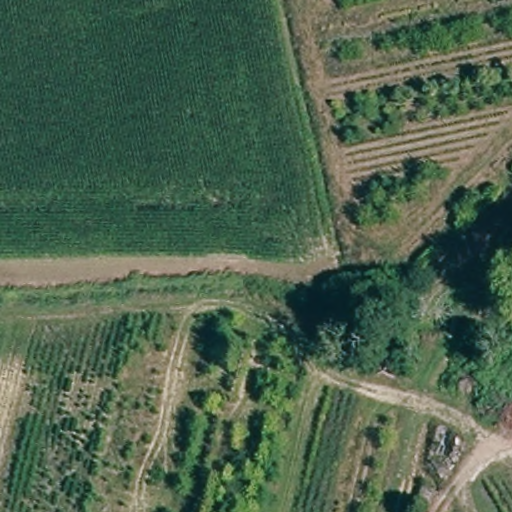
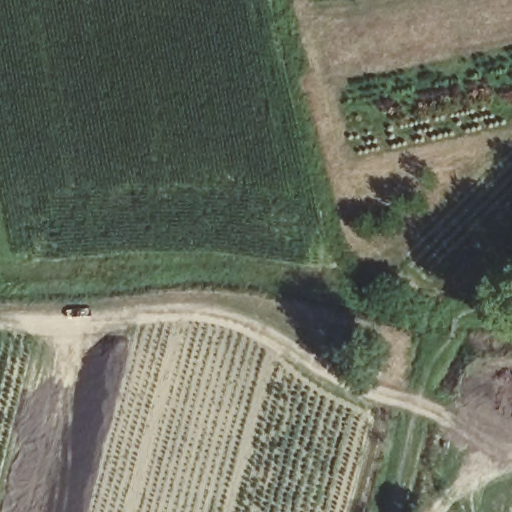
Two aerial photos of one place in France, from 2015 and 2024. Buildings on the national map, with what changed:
[]

